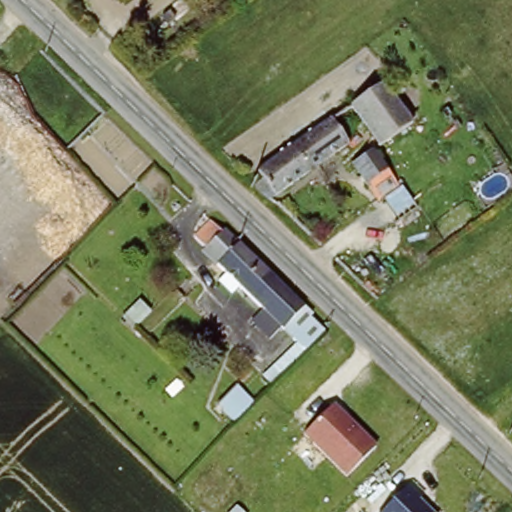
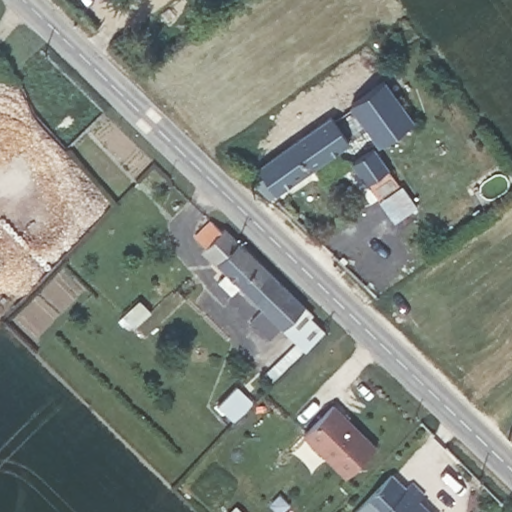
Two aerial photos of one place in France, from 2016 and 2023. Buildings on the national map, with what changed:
unchanged [(390,86),(417,126),(386,147),(373,129),(367,133),(360,124),(347,133),(356,146),(277,201),(260,189),(272,180),(265,172),(390,86)]
unchanged [(358,163),(378,149),(403,183),(382,198),(358,163)]
unchanged [(220,281),(225,277),(207,259),(200,252),(204,247),(195,238),(209,225),(222,233),(225,229),(309,310),(299,321),(293,315),(280,328),(275,327),(267,336),(247,318),(256,308),(233,286),(229,290),(220,281)]
unchanged [(377,443),(348,479),(303,442),(334,405),(377,443)]
unchanged [(423,488),(415,497),(431,512),(380,512),(409,481),(423,488)]

